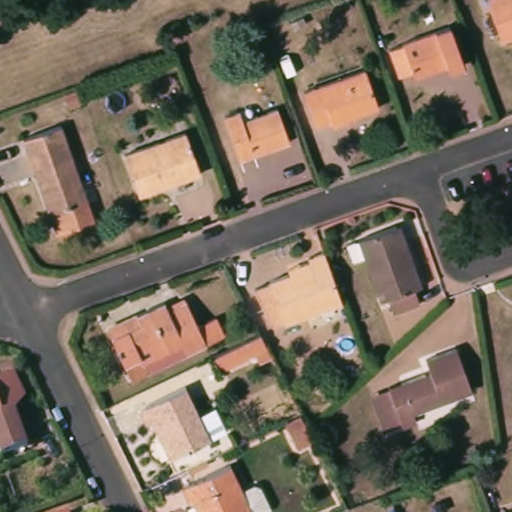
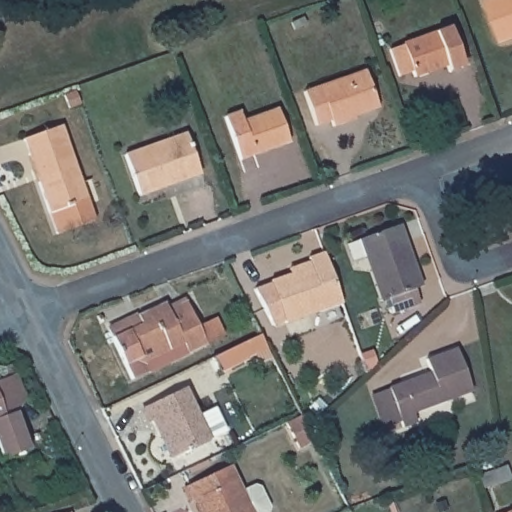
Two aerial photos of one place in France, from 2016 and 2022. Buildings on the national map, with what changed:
unchanged [(512,0),(512,40),(499,45),(482,1),(484,0),(512,0)]
unchanged [(446,26),(459,66),(446,71),(443,64),(418,74),(416,67),(398,74),(388,46),(446,26)]
unchanged [(361,70),(374,107),(346,116),(348,122),(329,129),(327,121),(312,127),(299,92),(361,70)]
unchanged [(79,95),(84,109),(73,113),(68,98),(79,95)]
unchanged [(233,112),(237,123),(273,109),(285,143),(235,160),(220,118),(233,112)]
unchanged [(47,208),(21,135),(59,123),(93,219),(70,227),(55,232),(47,208)]
unchanged [(182,130),(196,170),(136,192),(121,151),(182,130)]
unchanged [(400,225),(421,286),(413,289),(419,306),(392,316),(385,299),(378,302),(357,240),(400,225)]
unchanged [(285,267),(302,261),(301,258),(321,251),(340,303),(283,324),(268,284),(288,277),(285,267)]
unchanged [(166,320),(186,312),(190,320),(210,312),(220,339),(202,346),(205,354),(130,385),(111,346),(106,335),(135,322),(162,310),(166,320)]
unchanged [(266,348),(246,358),(247,361),(218,375),(210,358),(259,335),(266,348)]
unchanged [(363,393),(382,385),(424,369),(419,356),(450,345),(465,389),(409,410),(412,419),(395,426),(392,416),(374,424),(363,393)]
unchanged [(0,375),(0,368),(12,364),(17,376),(14,377),(22,398),(11,412),(13,415),(27,448),(4,458),(0,447),(0,382),(2,381),(0,375)]
unchanged [(151,423),(143,406),(185,388),(209,440),(176,456),(169,459),(151,423)]
unchanged [(306,419),(312,431),(318,443),(302,451),(290,426),(306,419)]
unchanged [(190,511),(182,491),(227,470),(238,494),(255,487),(268,512),(191,512),(190,511)]
unchanged [(512,505),(512,512),(492,512),(512,505)]

